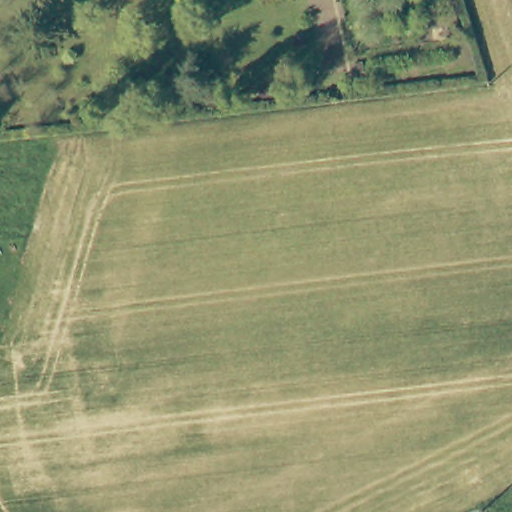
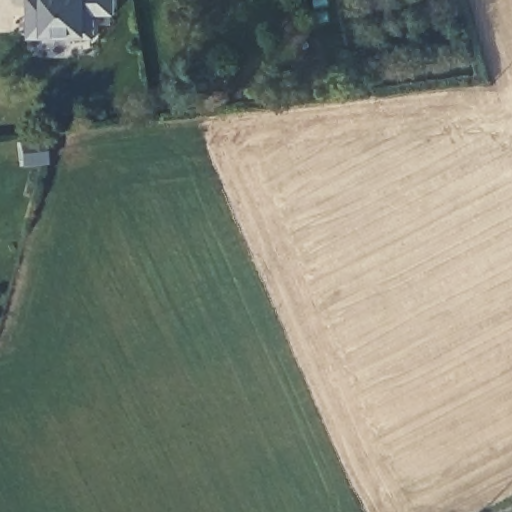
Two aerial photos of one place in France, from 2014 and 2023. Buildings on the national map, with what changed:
new [(97,17),(97,41),(29,40),(29,0),(116,0),(115,17),(97,17)]

